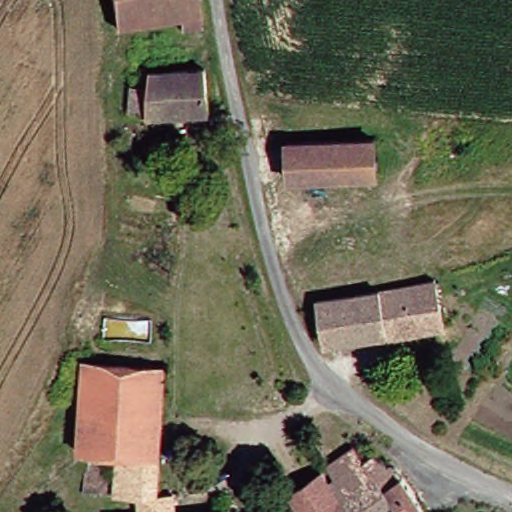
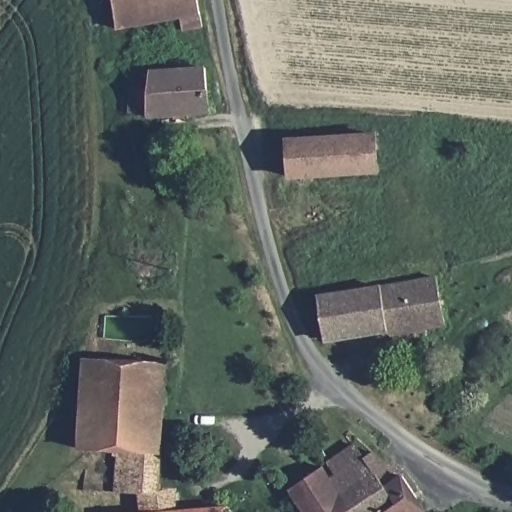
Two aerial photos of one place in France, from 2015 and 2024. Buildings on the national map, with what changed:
unchanged [(194,37),(175,38),(174,25),(109,31),(105,0),(189,0),(194,37)]
unchanged [(152,121),(127,121),(125,73),(149,73),(152,121)]
unchanged [(211,73),(214,119),(152,121),(149,73),(211,73)]
unchanged [(369,138),(373,178),(283,182),(280,143),(369,138)]
unchanged [(386,340),(384,332),(324,345),(313,301),(431,280),(439,318),(442,330),(386,340)]
unchanged [(144,512),(138,486),(115,486),(117,440),(80,438),(84,352),(163,357),(160,486),(177,483),(183,512),(144,512)]
unchanged [(329,479),(320,465),(351,446),(359,458),(369,453),(394,476),(417,512),(337,512),(319,485),(329,479)]
unchanged [(313,473),(319,485),(337,512),(295,512),(284,492),(313,473)]
unchanged [(233,512),(226,512),(233,511),(233,512)]

